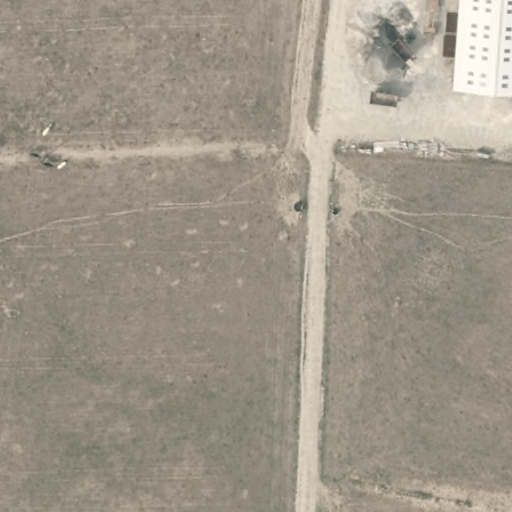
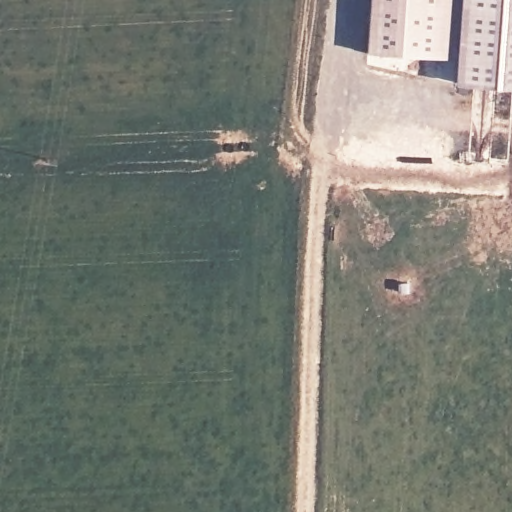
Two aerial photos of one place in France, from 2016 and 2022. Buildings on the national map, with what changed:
new [(369,0),(449,0),(445,59),(365,52),(369,0)]
unchanged [(461,0),(512,0),(512,88),(455,83),(461,0)]

